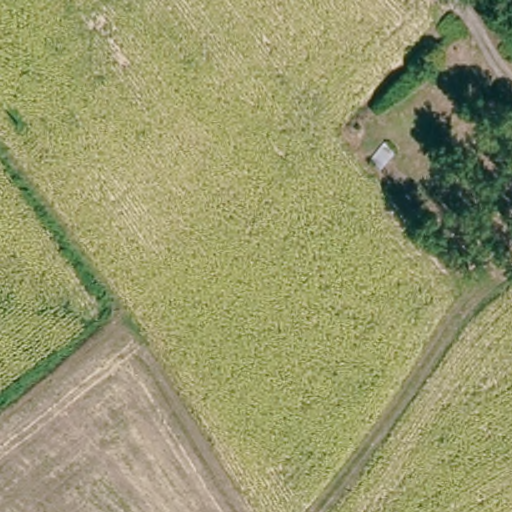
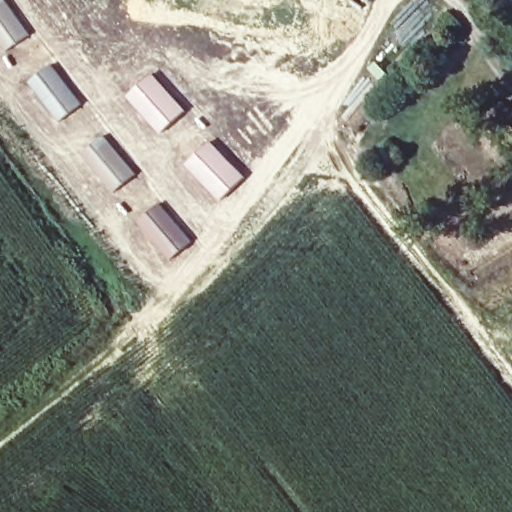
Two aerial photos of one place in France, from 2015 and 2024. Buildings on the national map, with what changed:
new [(35,39),(12,57),(0,41),(0,3),(4,0),(35,39)]
new [(152,67),(183,109),(155,129),(123,89),(136,79),(152,67)]
new [(59,68),(89,108),(66,126),(36,86),(46,77),(59,68)]
new [(179,157),(207,137),(236,178),(208,198),(179,157)]
new [(143,179),(120,196),(90,156),(113,139),(143,179)]
new [(192,242),(170,261),(138,222),(160,204),(192,242)]

